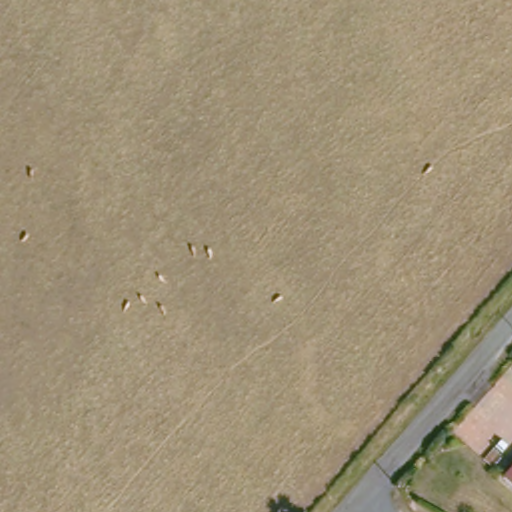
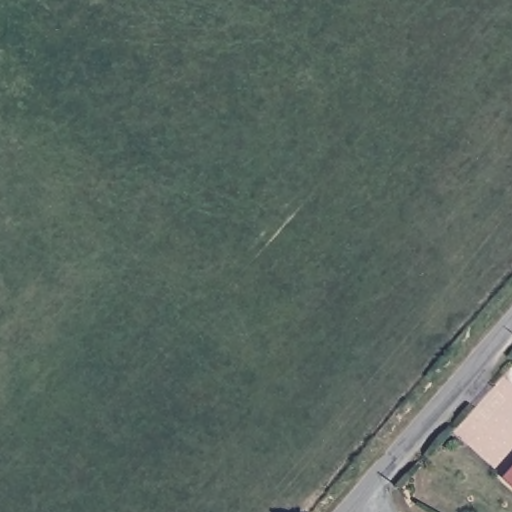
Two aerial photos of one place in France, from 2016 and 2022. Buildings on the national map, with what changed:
unchanged [(505,479),(512,470),(512,484),(505,479)]

